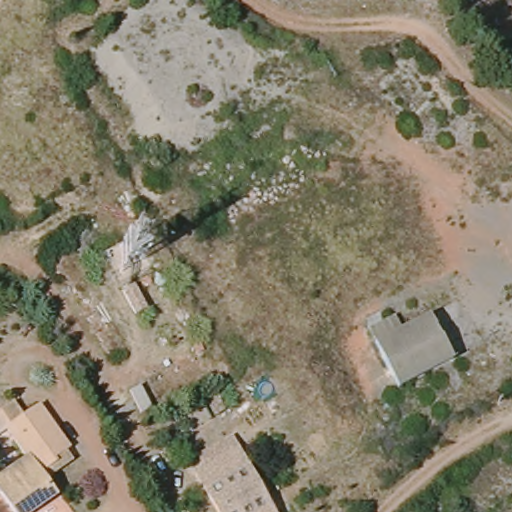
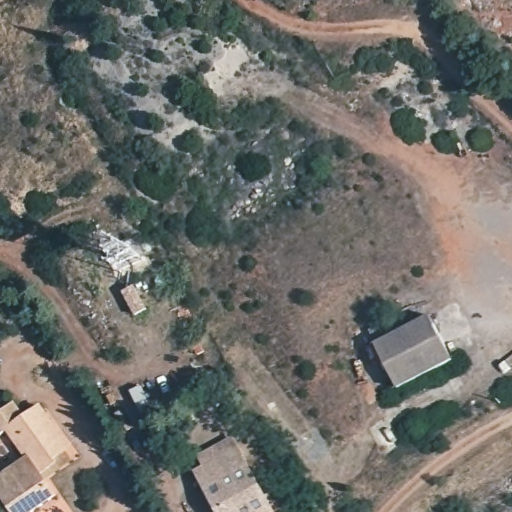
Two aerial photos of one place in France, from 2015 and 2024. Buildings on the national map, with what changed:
unchanged [(453,361),(398,388),(374,342),(430,315),(453,361)]
unchanged [(55,500),(38,512),(11,512),(0,497),(0,479),(26,462),(7,436),(0,442),(0,416),(14,406),(24,421),(40,408),(67,449),(63,452),(74,466),(45,485),(55,500)]
unchanged [(237,451),(269,508),(271,512),(217,512),(196,473),(237,451)]

